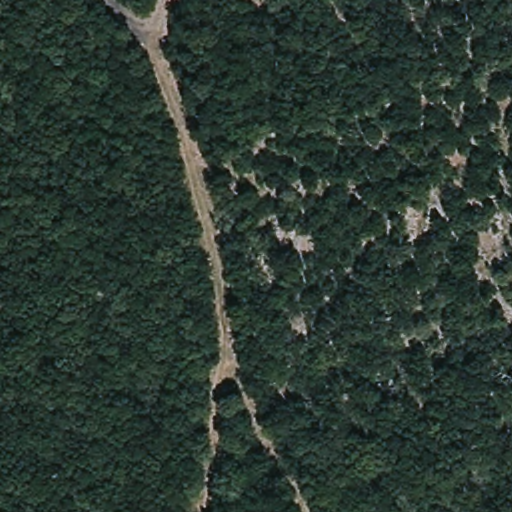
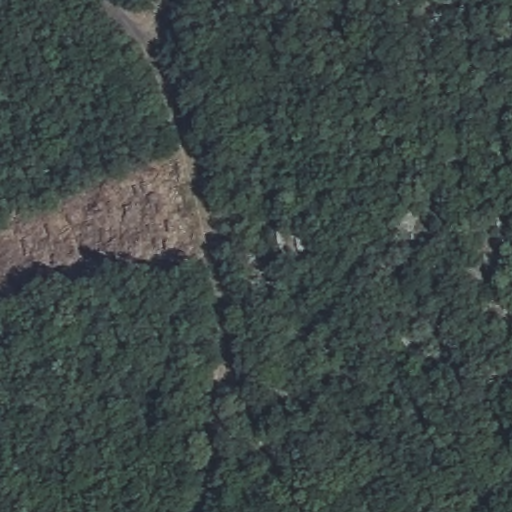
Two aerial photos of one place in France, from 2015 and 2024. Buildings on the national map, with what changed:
unchanged [(417,339),(407,315),(428,307),(437,330),(417,339)]

